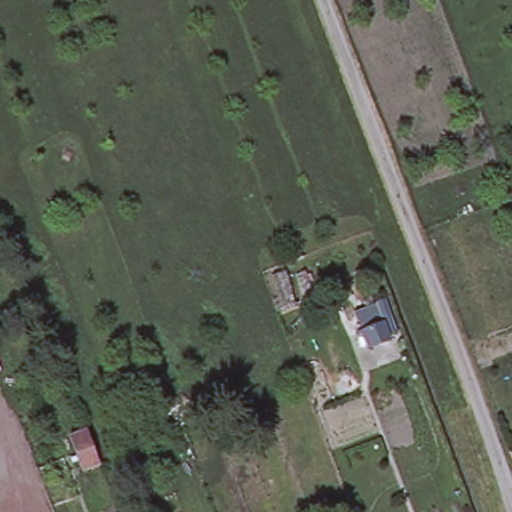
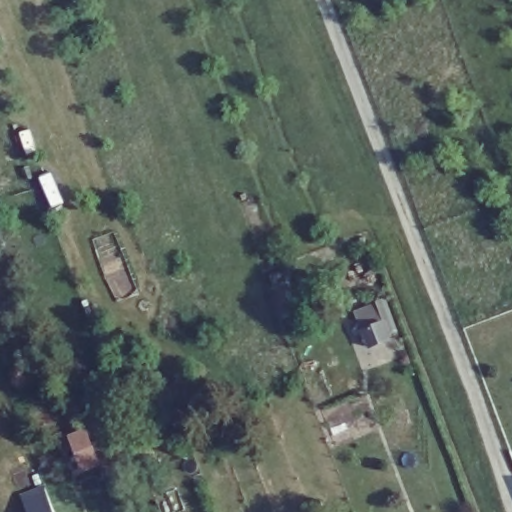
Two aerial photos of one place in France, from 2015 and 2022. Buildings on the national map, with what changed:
unchanged [(384,353),(373,357),(367,340),(377,336),(386,332),(392,350),(384,353)]
unchanged [(82,470),(77,453),(70,437),(87,431),(93,447),(99,463),(82,470)]
new [(47,483),(57,512),(29,512),(22,493),(47,483)]

